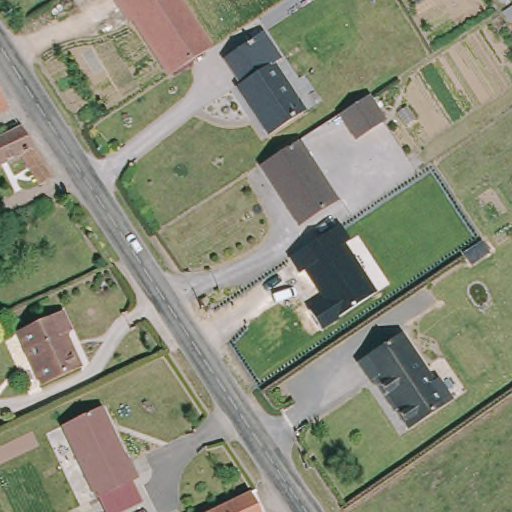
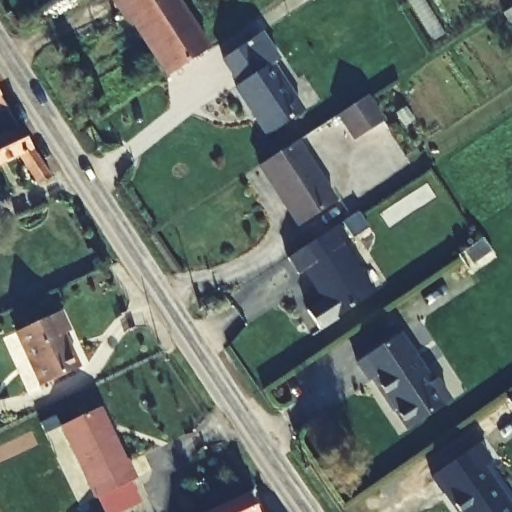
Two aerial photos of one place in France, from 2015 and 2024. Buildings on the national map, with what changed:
unchanged [(212,48),(167,78),(130,22),(126,24),(111,0),(182,0),(212,48)]
unchanged [(279,59),(270,65),(300,113),(268,132),(237,82),(241,79),(227,56),(264,35),(279,59)]
unchanged [(12,108),(0,113),(0,88),(12,108)]
unchanged [(383,123),(353,141),(338,115),(366,97),(383,123)]
unchanged [(38,183),(20,152),(0,161),(0,134),(22,123),(55,175),(38,183)]
unchanged [(297,137),(336,197),(295,222),(256,163),(297,137)]
unchanged [(307,303),(320,294),(308,265),(301,271),(284,254),(339,222),(354,237),(348,241),(376,292),(325,327),(307,303)]
unchanged [(58,316),(68,333),(61,337),(77,369),(37,388),(22,354),(14,336),(58,316)]
unchanged [(350,354),(395,326),(423,367),(430,363),(447,393),(406,419),(370,368),(362,373),(350,354)]
new [(512,404),(508,399),(512,396),(512,404)]
unchanged [(115,453),(123,449),(137,476),(92,493),(60,418),(90,405),(115,453)]
new [(480,441),(493,460),(485,466),(512,502),(512,512),(458,512),(432,476),(480,441)]
unchanged [(206,512),(247,492),(258,512),(206,512)]

